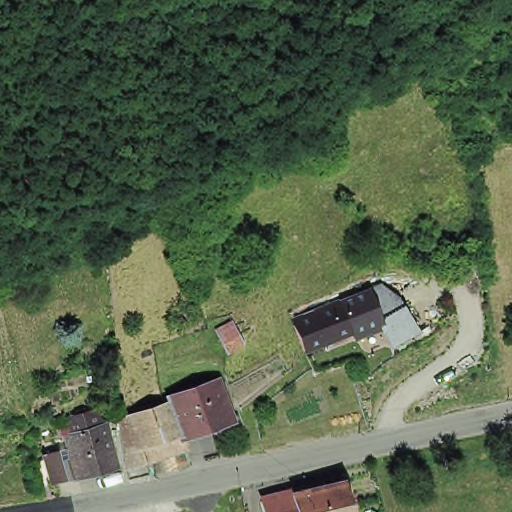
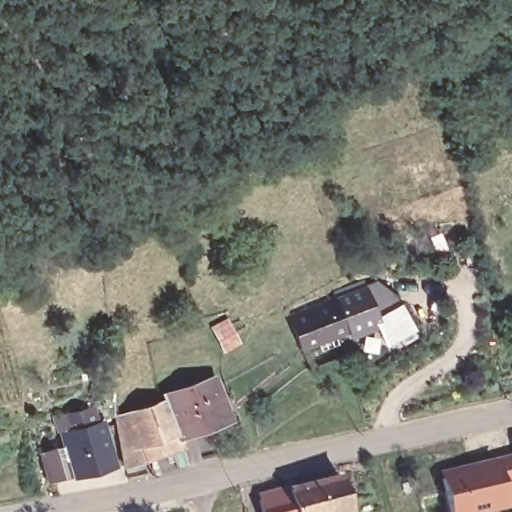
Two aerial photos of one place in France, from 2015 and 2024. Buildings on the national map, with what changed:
unchanged [(287,316),(335,299),(365,287),(370,301),(377,299),(382,310),(375,313),(376,316),(347,328),(300,347),(287,316)]
unchanged [(397,305),(409,326),(387,338),(376,316),(397,305)]
unchanged [(236,339),(221,346),(217,339),(232,332),(236,339)]
unchanged [(173,389),(221,372),(235,412),(187,430),(185,427),(175,394),(173,389)]
unchanged [(180,429),(185,443),(135,461),(127,409),(175,394),(185,427),(180,429)]
unchanged [(44,445),(55,443),(67,440),(64,425),(70,424),(65,407),(93,400),(97,416),(105,415),(116,460),(75,471),(75,469),(59,473),(50,474),(44,445)]
new [(502,489),(507,509),(497,512),(448,512),(438,470),(494,457),(512,453),(512,487),(502,489)]
unchanged [(339,475),(348,512),(295,512),(289,488),(339,475)]
unchanged [(289,488),(295,512),(262,512),(257,495),(289,488)]

